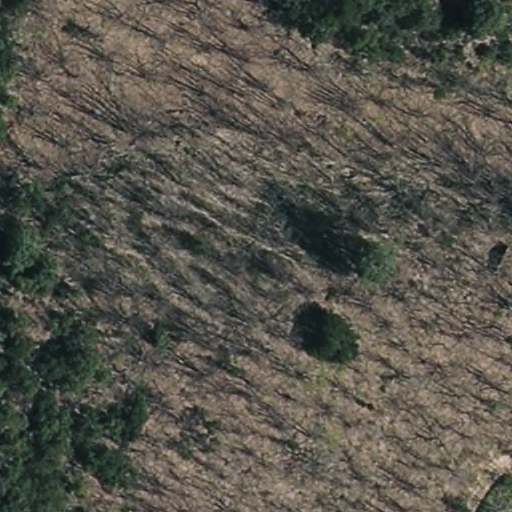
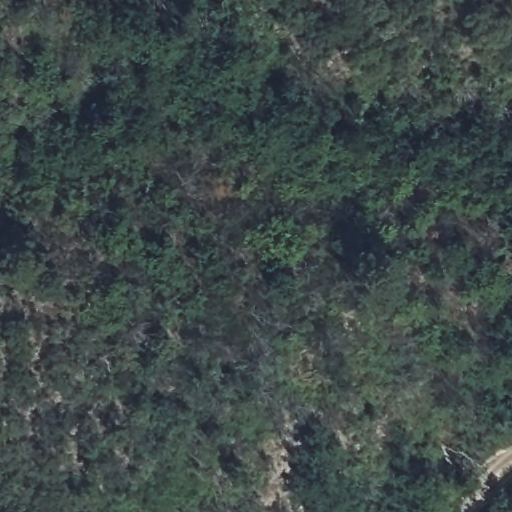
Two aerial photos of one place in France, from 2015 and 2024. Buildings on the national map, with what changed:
unchanged [(489,267),(495,254),(502,242),(512,248),(512,279),(510,278),(489,267)]

